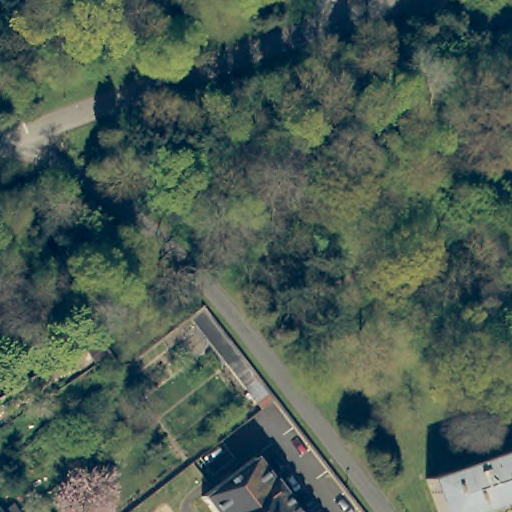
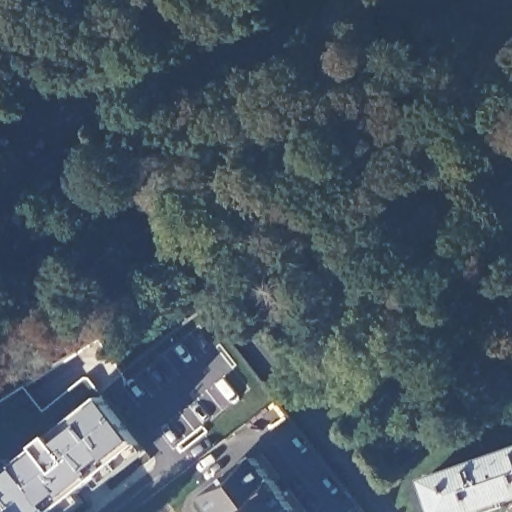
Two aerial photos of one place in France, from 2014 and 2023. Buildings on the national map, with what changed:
new [(70,512),(0,512),(0,464),(10,478),(45,452),(41,447),(55,437),(57,440),(107,400),(146,450),(70,512)]
unchanged [(424,484),(442,478),(443,479),(512,455),(512,505),(491,512),(434,512),(424,484)]
unchanged [(200,500),(256,457),(297,512),(208,512),(200,500)]

